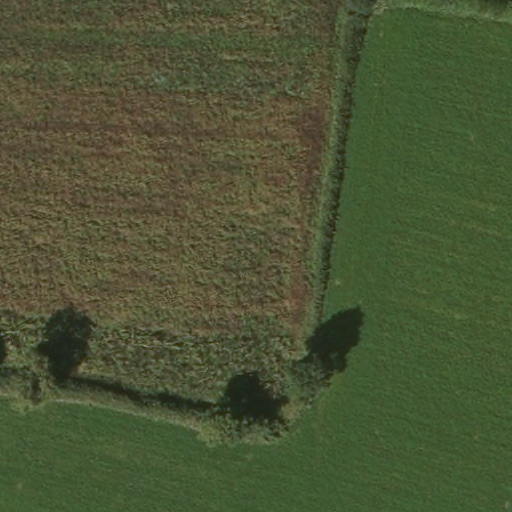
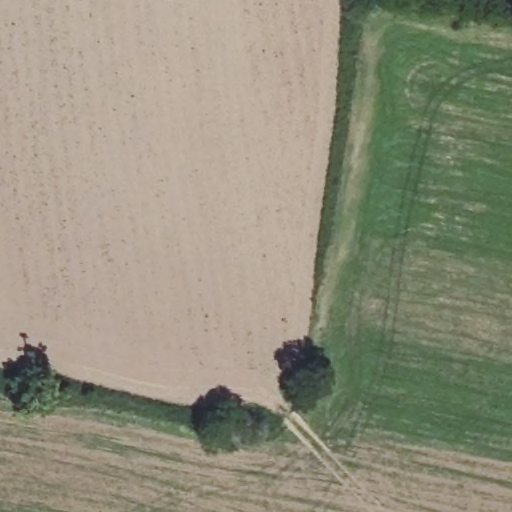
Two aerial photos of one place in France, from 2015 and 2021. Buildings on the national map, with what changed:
[]

